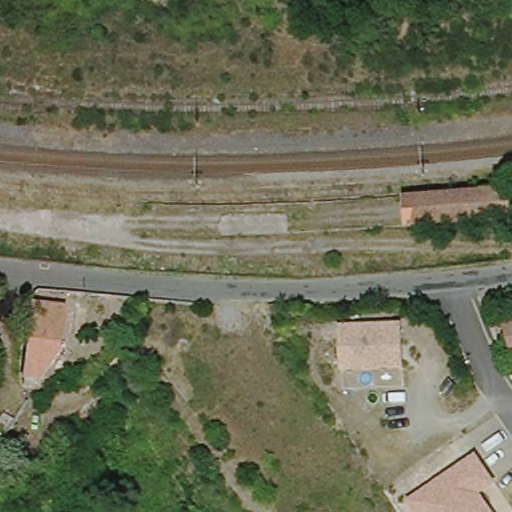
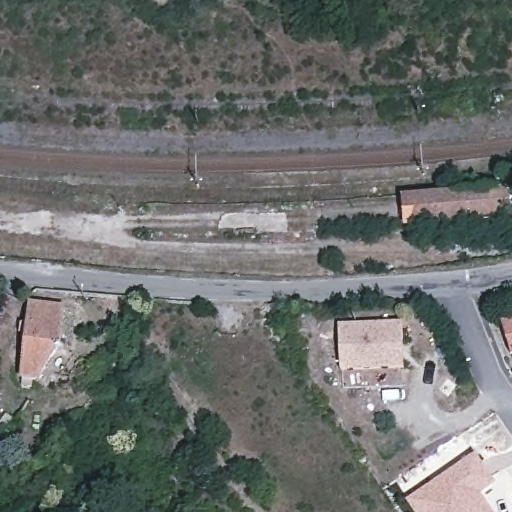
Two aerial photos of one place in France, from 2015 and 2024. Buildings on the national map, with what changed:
unchanged [(509,209),(509,213),(507,214),(458,223),(454,192),(506,183),(509,209)]
unchanged [(406,200),(454,192),(458,223),(410,231),(406,200)]
unchanged [(53,398),(41,391),(36,398),(23,393),(31,314),(60,315),(64,309),(69,308),(65,330),(63,358),(72,363),(53,398)]
unchanged [(407,369),(344,371),(341,323),(407,320),(407,369)]
unchanged [(512,328),(512,337),(510,328),(512,328)]
unchanged [(117,407),(96,434),(81,422),(102,395),(117,407)]
unchanged [(483,495),(495,512),(418,512),(411,499),(479,455),(500,480),(483,495)]

